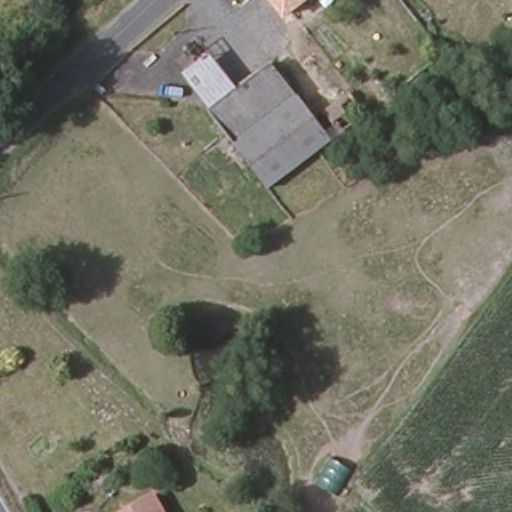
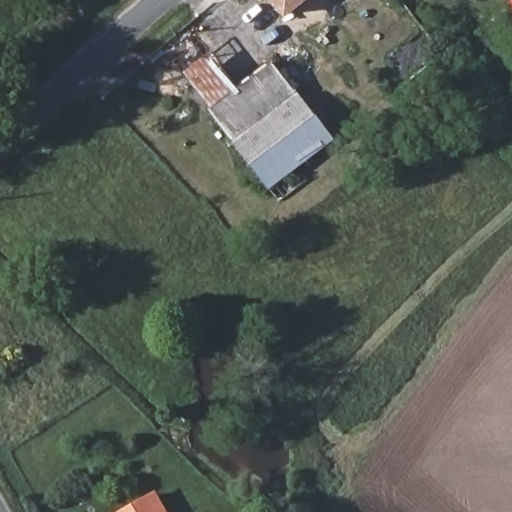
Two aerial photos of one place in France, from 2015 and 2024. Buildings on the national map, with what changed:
unchanged [(284,15),(272,0),(305,0),(291,11),(284,15)]
unchanged [(253,121),(228,90),(264,62),(289,94),(253,121)]
unchanged [(351,126),(336,105),(353,93),(374,79),(388,99),(351,126)]
unchanged [(328,141),(267,188),(207,108),(228,90),(253,121),(289,94),(328,141)]
unchanged [(164,512),(124,512),(133,507),(155,494),(164,512)]

